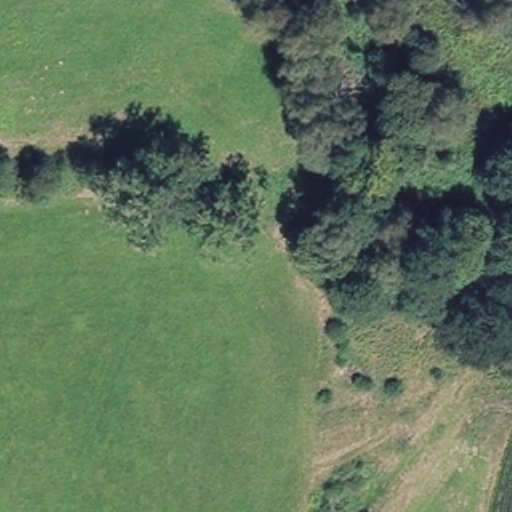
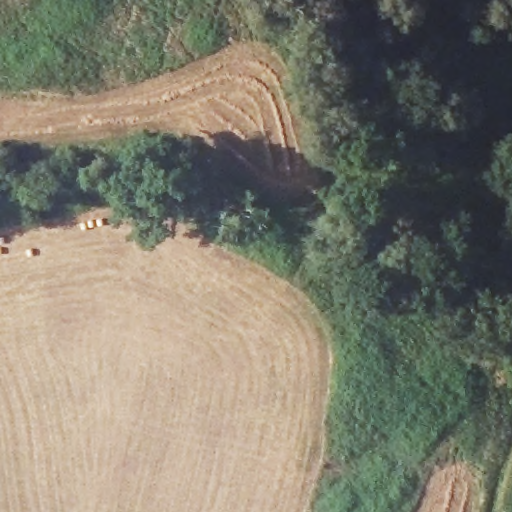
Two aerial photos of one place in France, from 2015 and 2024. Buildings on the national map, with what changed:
[]

